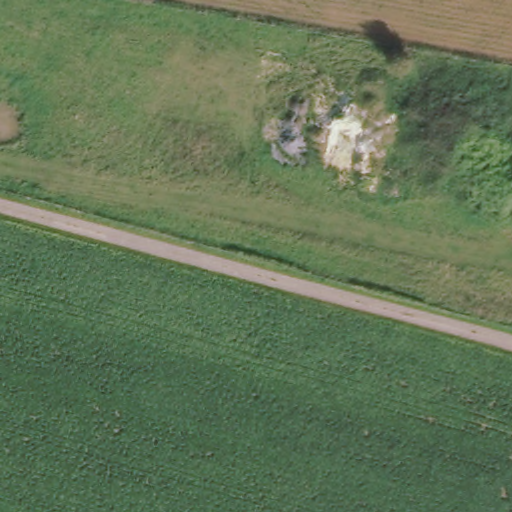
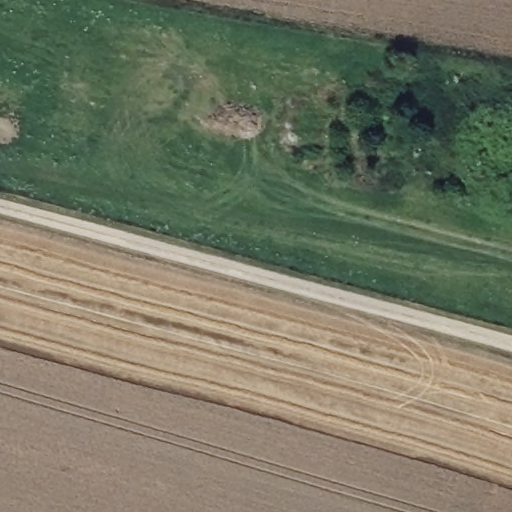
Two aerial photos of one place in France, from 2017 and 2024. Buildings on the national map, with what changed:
[]

